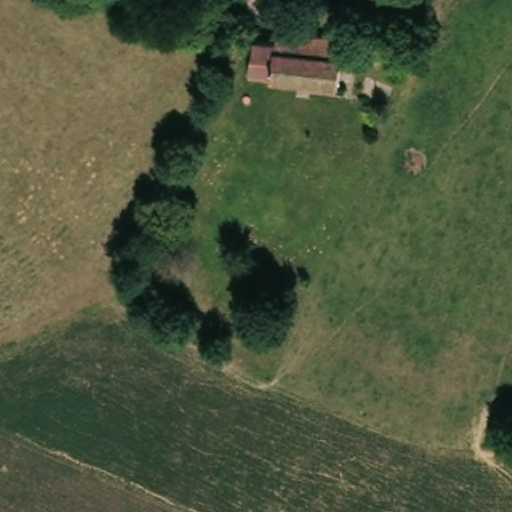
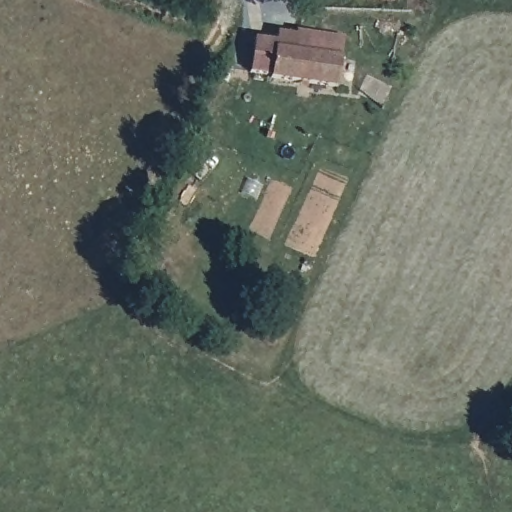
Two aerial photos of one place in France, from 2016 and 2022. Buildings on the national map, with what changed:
unchanged [(348,1),(348,0),(402,0),(402,3),(348,1)]
unchanged [(348,97),(280,90),(281,85),(256,83),(259,45),(281,48),(282,40),(300,42),(301,35),(355,40),(353,55),(348,97)]
unchanged [(282,327),(265,319),(271,305),(289,314),(282,327)]

